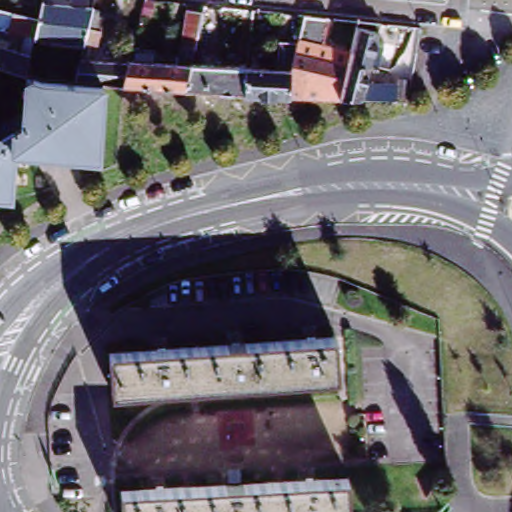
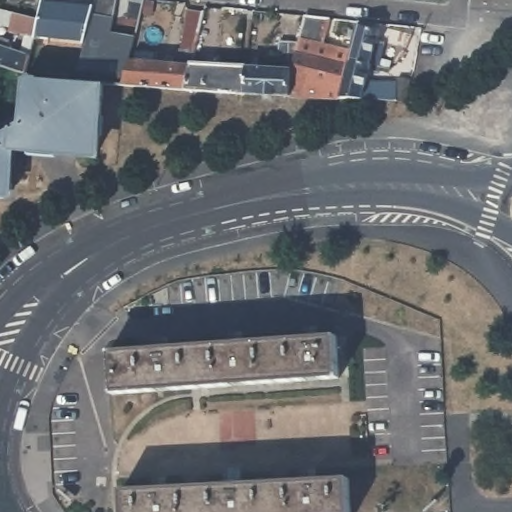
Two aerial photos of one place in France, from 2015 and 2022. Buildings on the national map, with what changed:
unchanged [(93,10),(91,15),(83,48),(36,40),(46,2),(93,10)]
unchanged [(154,4),(151,15),(144,13),(146,2),(154,4)]
unchanged [(94,10),(100,12),(98,16),(105,18),(98,46),(86,43),(93,15),(94,10)]
unchanged [(213,66),(247,68),(245,94),(185,90),(124,86),(129,64),(129,63),(134,63),(135,53),(150,54),(149,64),(175,65),(188,12),(204,14),(192,64),(203,65),(213,66)]
unchanged [(9,50),(23,55),(26,38),(10,35),(11,30),(0,28),(0,13),(13,15),(39,21),(30,58),(31,58),(26,76),(15,72),(0,67),(0,41),(11,44),(9,50)]
unchanged [(280,43),(298,44),(304,17),(330,20),(324,45),(352,52),(351,56),(340,99),(290,97),(245,94),(247,68),(278,70),(280,43)]
unchanged [(411,82),(409,101),(399,100),(363,99),(363,100),(340,99),(351,56),(352,52),(359,23),(382,25),(376,46),(384,48),(385,44),(398,47),(393,69),(372,64),(367,83),(400,86),(400,81),(411,82)]
unchanged [(129,64),(124,86),(100,84),(99,84),(76,83),(81,61),(129,64)]
unchanged [(0,134),(0,127),(25,112),(28,77),(40,81),(76,83),(99,84),(100,84),(95,152),(94,158),(31,153),(16,152),(13,193),(7,198),(3,197),(0,197),(0,142),(4,140),(0,134)]
unchanged [(113,381),(112,374),(111,354),(338,338),(341,380),(114,396),(113,381)]
unchanged [(349,481),(350,512),(123,512),(121,494),(349,481)]

